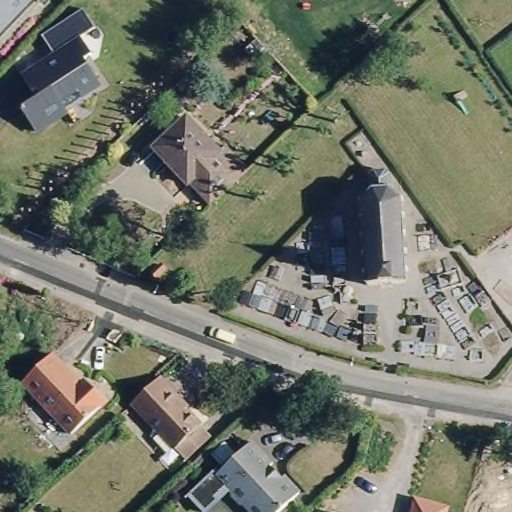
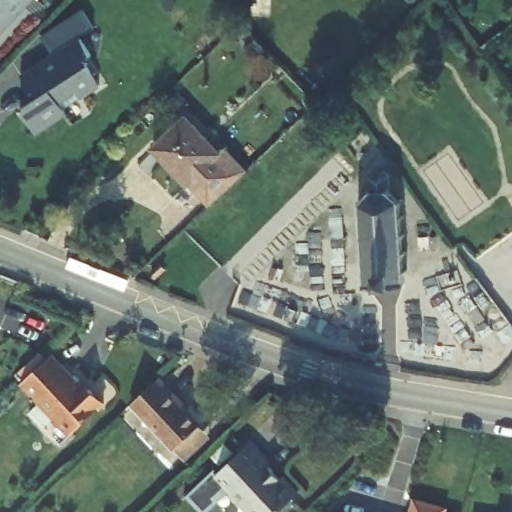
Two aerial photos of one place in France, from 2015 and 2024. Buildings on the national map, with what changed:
unchanged [(0,0),(24,0),(26,2),(0,30),(0,0)]
unchanged [(53,52),(43,36),(83,10),(95,27),(81,36),(80,35),(53,52)]
unchanged [(68,116),(38,136),(21,107),(36,95),(21,74),(80,35),(96,56),(87,64),(102,85),(63,107),(68,116)]
unchanged [(221,155),(226,148),(246,170),(208,205),(190,185),(184,189),(149,150),(185,114),(221,155)]
unchanged [(360,180),(366,174),(376,171),(384,177),(386,193),(399,200),(410,287),(361,292),(351,204),(363,196),(360,180)]
unchanged [(53,355),(86,393),(91,390),(102,401),(69,431),(24,382),(53,355)]
unchanged [(165,384),(183,405),(178,408),(201,434),(176,456),(136,410),(165,384)]
unchanged [(249,438),(259,451),(264,450),(269,456),(267,460),(279,474),(281,472),(295,490),(270,512),(255,512),(216,467),(249,438)]
unchanged [(463,511),(463,512),(407,512),(412,495),(452,506),(451,508),(463,511)]

